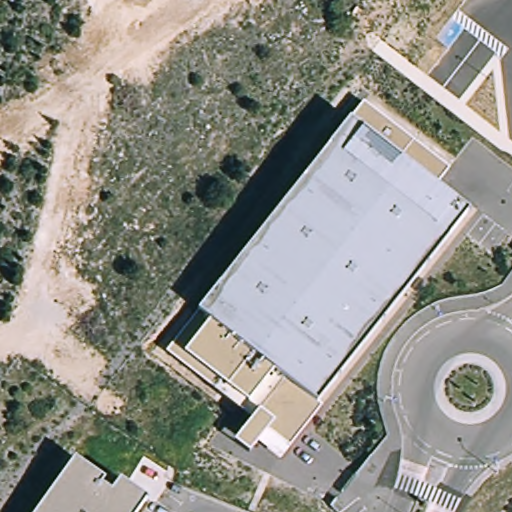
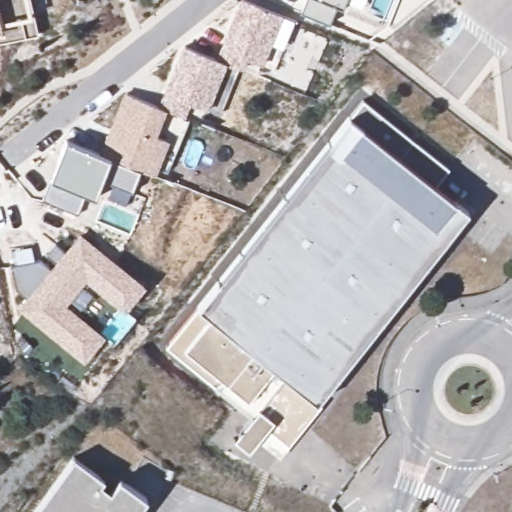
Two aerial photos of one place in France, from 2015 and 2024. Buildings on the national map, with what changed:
new [(2,32),(0,21),(0,0),(31,0),(38,34),(0,43),(0,33),(2,32)]
new [(241,0),(242,0),(280,16),(259,66),(221,50),(241,0)]
new [(341,10),(334,7),(328,25),(298,13),(304,0),(345,0),(341,10)]
new [(2,32),(0,33),(0,21),(2,32)]
new [(220,116),(205,111),(164,94),(183,47),(224,64),(239,69),(220,116)]
new [(217,60),(221,50),(246,60),(241,70),(217,60)]
new [(164,94),(188,104),(182,117),(159,107),(164,94)]
new [(125,95),(163,110),(153,136),(167,141),(153,176),(101,155),(125,95)]
unchanged [(257,441),(252,447),(248,452),(233,440),(237,435),(251,417),(165,350),(197,310),(196,309),(362,100),(448,169),(435,186),(468,212),(316,402),(321,406),(287,448),(280,458),(257,441)]
new [(50,180),(65,141),(101,155),(109,159),(139,170),(132,189),(102,180),(95,196),(85,192),(78,213),(43,199),(50,180)]
new [(84,361),(72,352),(22,311),(28,302),(17,292),(11,268),(40,261),(53,272),(57,265),(52,261),(46,256),(55,244),(62,249),(67,254),(80,237),(142,285),(122,308),(86,279),(64,307),(91,328),(103,337),(84,361)]
unchanged [(110,479),(107,483),(117,491),(126,479),(153,498),(144,512),(41,512),(80,457),(110,479)]

